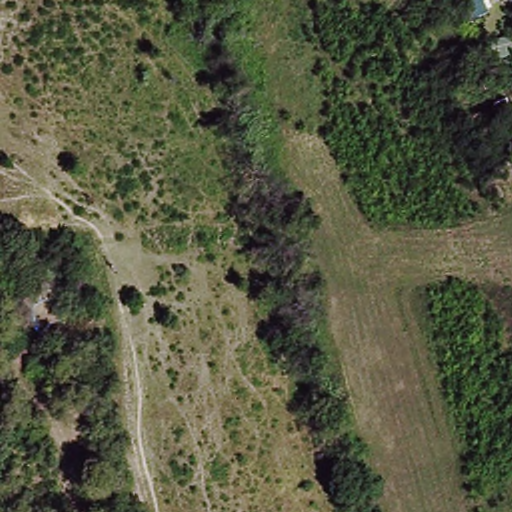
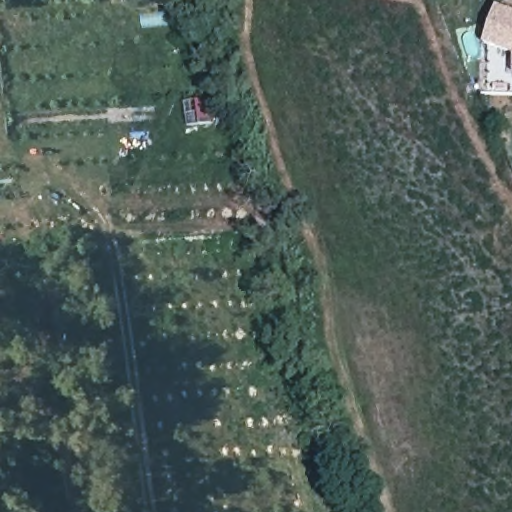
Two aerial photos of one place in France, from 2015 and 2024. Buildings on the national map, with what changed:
new [(512,12),(512,52),(486,42),(498,7),(512,12)]

